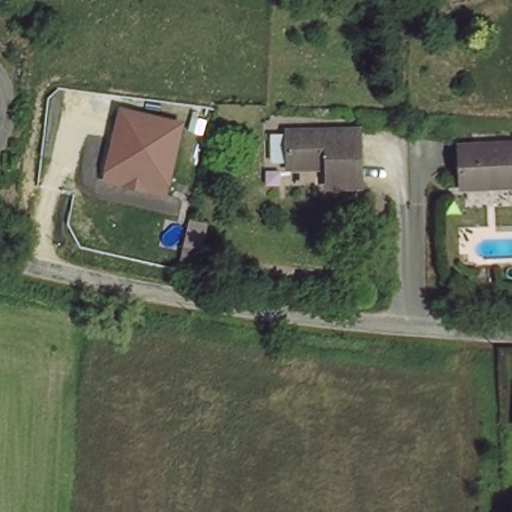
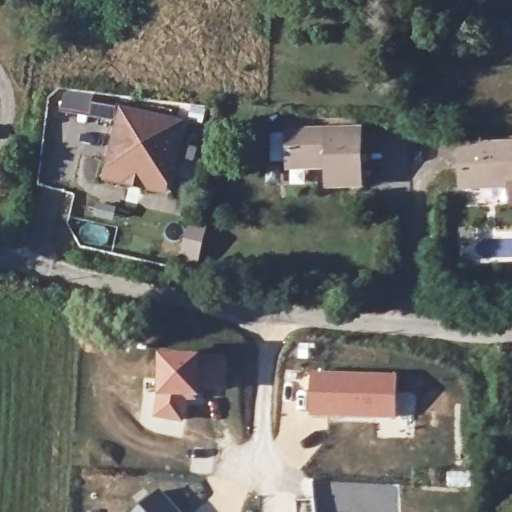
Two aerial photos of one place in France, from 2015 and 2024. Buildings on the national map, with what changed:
unchanged [(184,121),(166,197),(100,182),(118,106),(184,121)]
unchanged [(291,158),(291,126),(364,127),(366,183),(333,184),(332,170),(291,170),(291,158)]
unchanged [(469,146),(512,145),(512,188),(470,188),(469,146)]
unchanged [(176,252),(180,224),(182,213),(202,216),(200,226),(195,255),(176,252)]
new [(153,419),(156,397),(160,354),(202,355),(202,400),(187,400),(183,424),(153,419)]
new [(307,370),(397,373),(396,419),(305,417),(307,370)]
new [(160,488),(183,512),(135,512),(160,488)]

